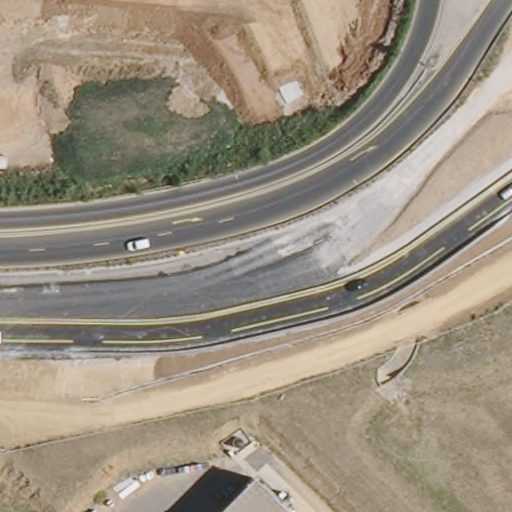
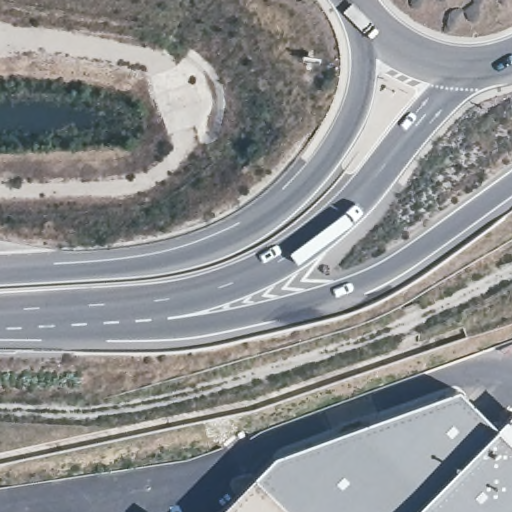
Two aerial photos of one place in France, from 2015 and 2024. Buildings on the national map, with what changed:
new [(251,479),(273,456),(458,390),(494,427),(496,428),(512,412),(512,512),(284,512),(251,479)]
unchanged [(284,512),(219,512),(251,479),(284,512)]

